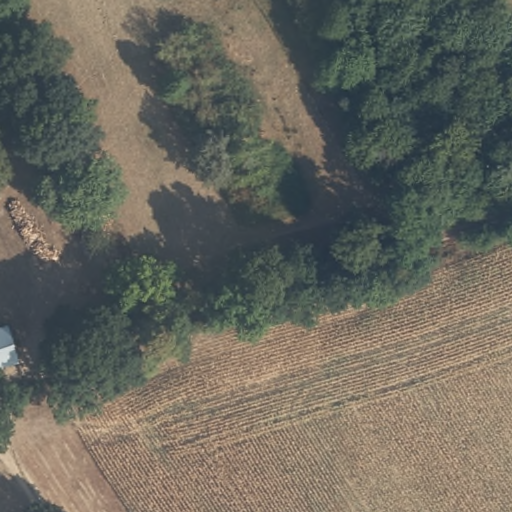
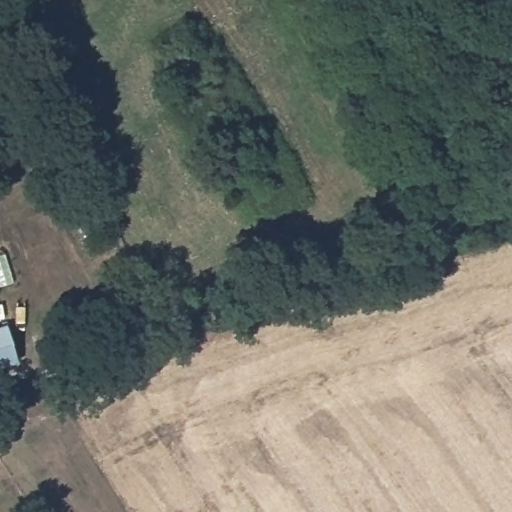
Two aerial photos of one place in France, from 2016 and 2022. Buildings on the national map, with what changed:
unchanged [(8,322),(19,355),(0,361),(0,324),(8,322)]

